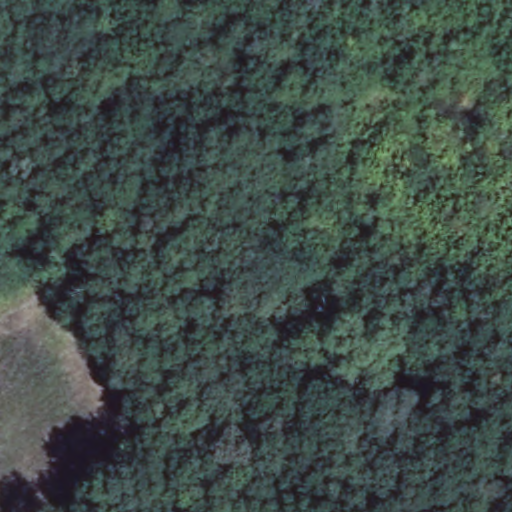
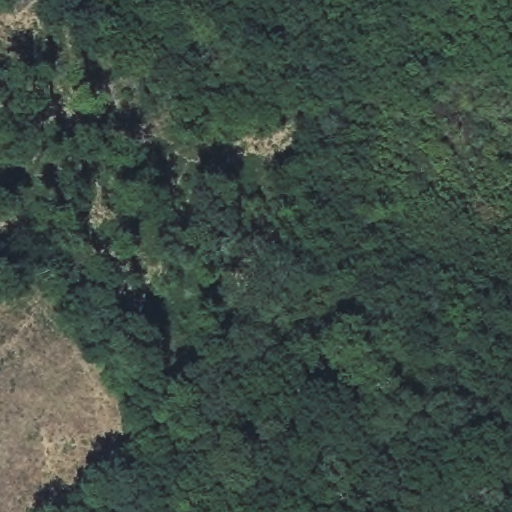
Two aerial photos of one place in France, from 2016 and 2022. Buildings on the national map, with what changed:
[]

